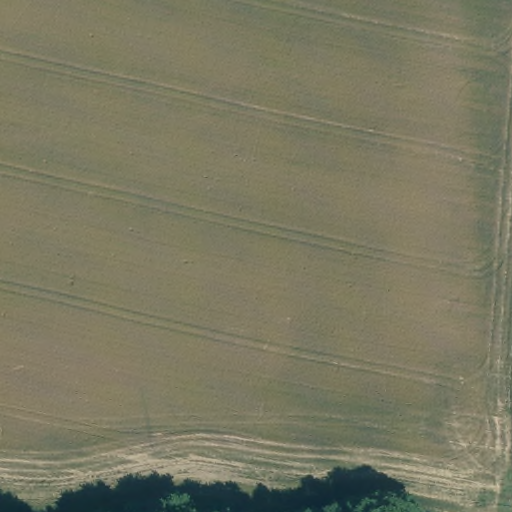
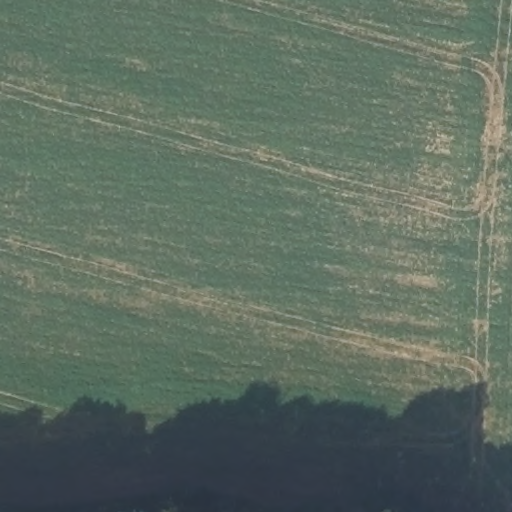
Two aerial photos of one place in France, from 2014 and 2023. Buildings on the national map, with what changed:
[]

